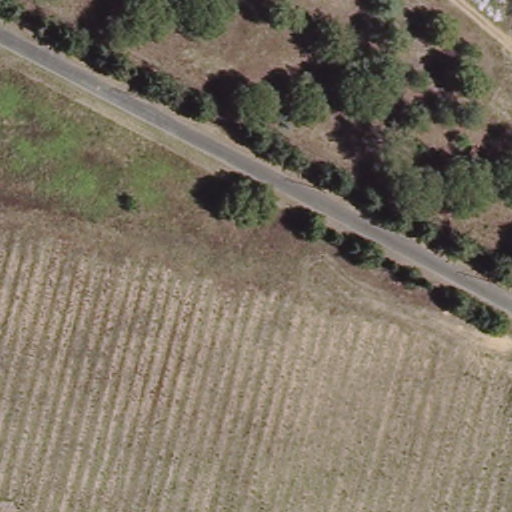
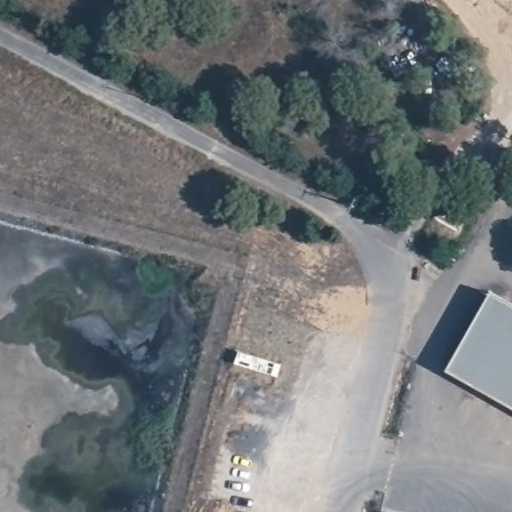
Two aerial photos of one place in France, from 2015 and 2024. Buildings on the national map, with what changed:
new [(447,370),(490,293),(512,305),(512,407),(447,370)]

